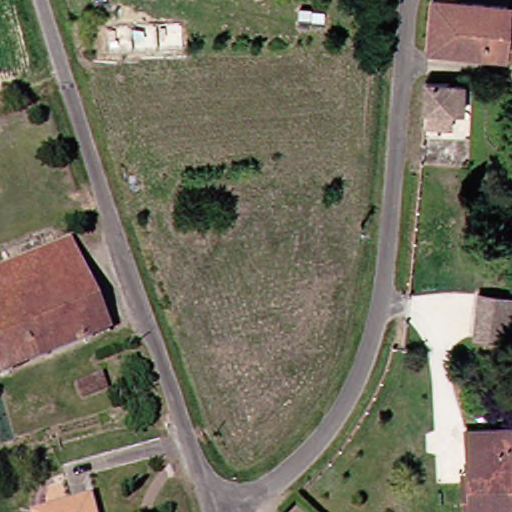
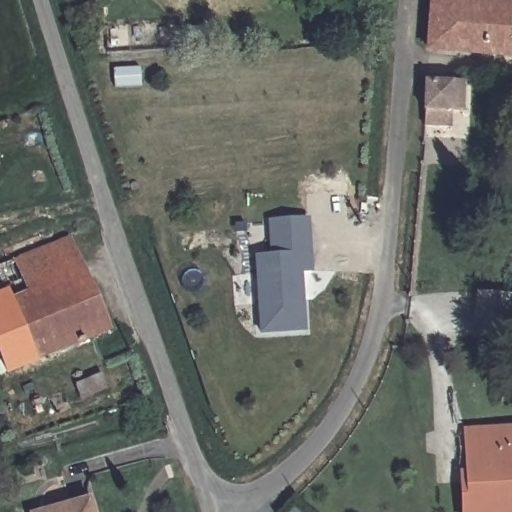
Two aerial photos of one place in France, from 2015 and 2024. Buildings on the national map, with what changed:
unchanged [(462,0),(512,7),(512,57),(426,49),(430,0),(462,0)]
unchanged [(419,74),(448,77),(458,78),(455,109),(444,109),(442,123),(415,119),(419,74)]
new [(310,215),(313,269),(300,270),(306,326),(260,330),(254,252),(270,250),(268,218),(310,215)]
unchanged [(65,235),(101,325),(85,332),(49,242),(65,235)]
unchanged [(16,360),(0,367),(0,262),(49,242),(85,332),(16,360)]
unchanged [(505,336),(495,334),(467,331),(472,285),(500,289),(511,290),(505,336)]
unchanged [(462,481),(467,482),(470,424),(512,425),(512,478),(510,478),(508,512),(461,512),(462,481)]
unchanged [(87,512),(22,512),(22,511),(35,508),(82,497),(87,512)]

